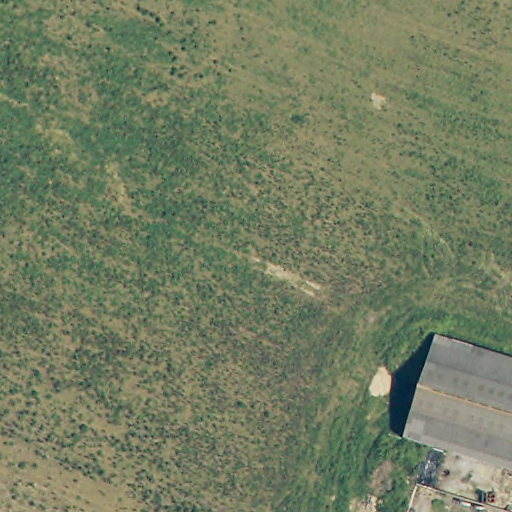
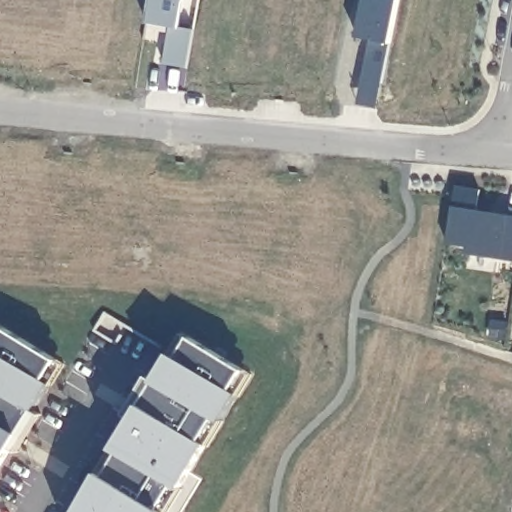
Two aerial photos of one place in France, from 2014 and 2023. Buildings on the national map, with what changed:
new [(163,63),(172,26),(146,23),(150,0),(183,0),(179,25),(194,27),(187,68),(163,63)]
new [(357,102),(368,39),(356,37),(362,0),(397,0),(388,41),(377,105),(357,102)]
new [(466,246),(447,242),(455,185),(479,188),(476,209),(512,215),(512,259),(465,254),(466,246)]
new [(52,382),(21,432),(0,467),(0,331),(2,327),(56,360),(45,378),(52,382)]
demolished [(437,333),(512,354),(512,468),(408,437),(437,333)]
new [(240,395),(224,422),(216,417),(201,440),(210,445),(182,489),(175,484),(162,510),(165,512),(74,512),(97,472),(107,477),(121,452),(113,447),(131,418),(126,415),(149,375),(157,377),(172,351),(180,356),(187,336),(243,371),(232,389),(240,395)]

